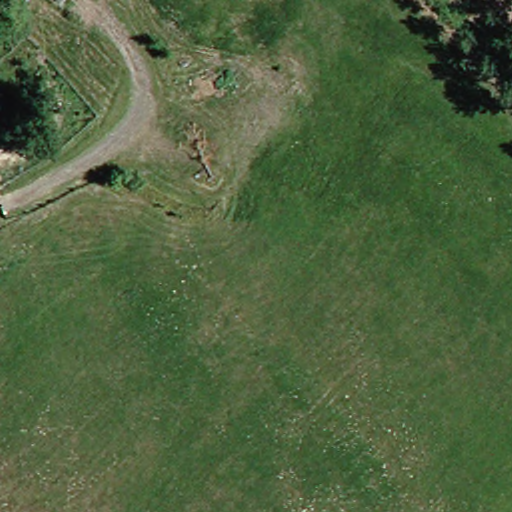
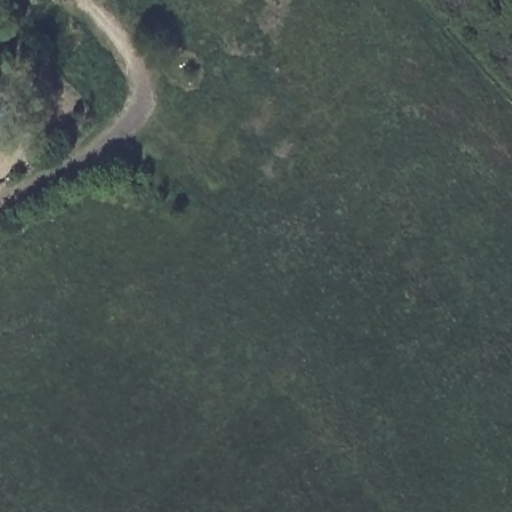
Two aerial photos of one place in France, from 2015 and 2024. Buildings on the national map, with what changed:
unchanged [(44,0),(51,0),(47,3),(44,0)]

